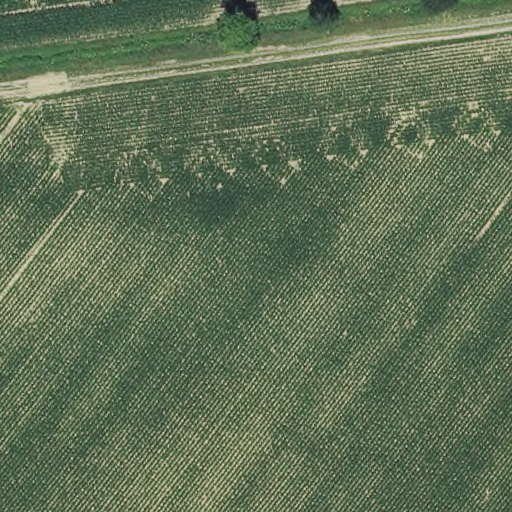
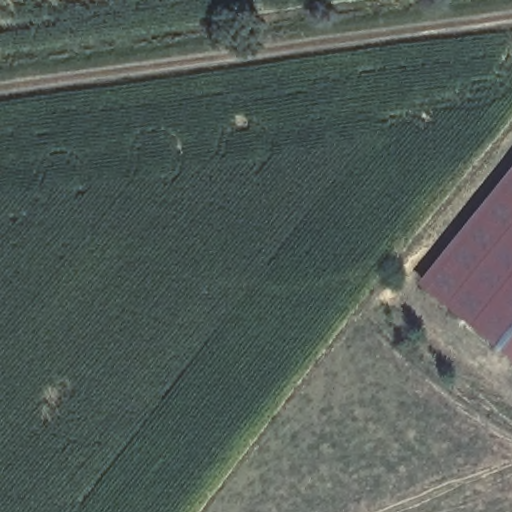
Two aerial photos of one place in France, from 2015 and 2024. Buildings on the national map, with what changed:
new [(422,284),(512,176),(512,357),(422,284)]

